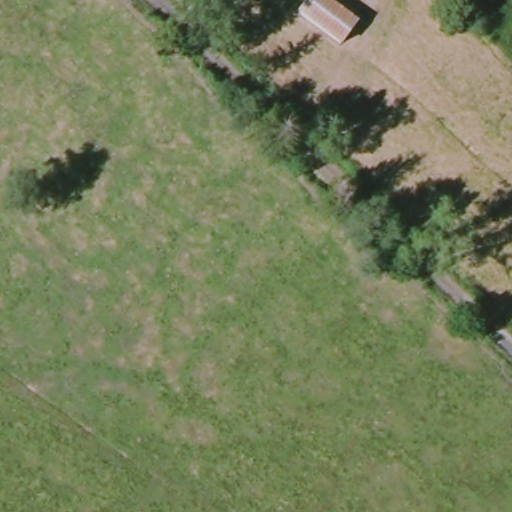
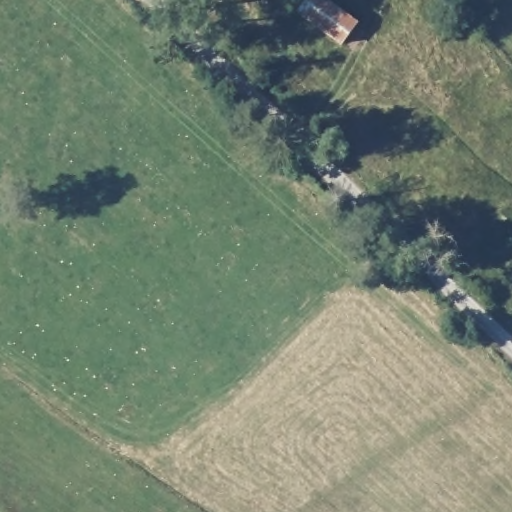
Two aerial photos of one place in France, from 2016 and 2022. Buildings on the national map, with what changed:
unchanged [(305,17),(318,0),(331,0),(360,25),(365,31),(348,50),(305,17)]

